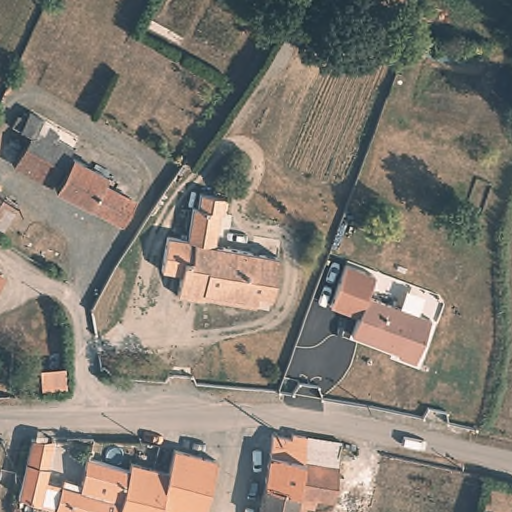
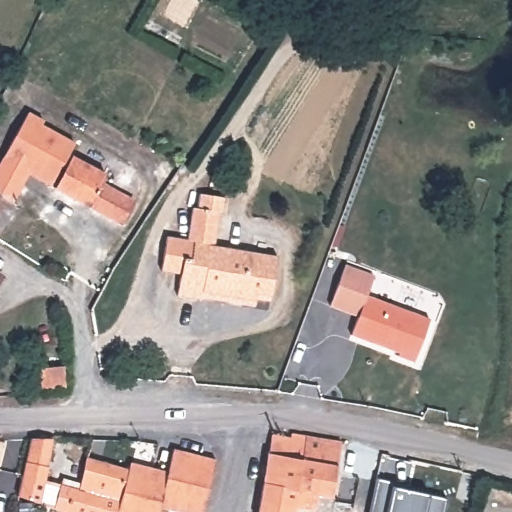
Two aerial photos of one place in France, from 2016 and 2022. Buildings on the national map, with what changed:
unchanged [(68,156),(54,188),(12,166),(29,136),(19,130),(28,112),(44,121),(59,129),(78,139),(68,156)]
unchanged [(106,177),(101,185),(134,203),(122,225),(117,221),(102,214),(54,188),(68,156),(106,177)]
unchanged [(21,209),(16,205),(0,231),(0,191),(21,209)]
unchanged [(214,241),(277,252),(271,291),(256,289),(255,296),(203,288),(202,295),(177,291),(180,269),(160,266),(166,232),(187,235),(192,203),(219,207),(214,241)]
unchanged [(458,227),(460,220),(476,226),(474,233),(458,227)]
unchanged [(435,320),(419,362),(403,357),(404,353),(356,335),(363,317),(335,306),(350,265),(379,276),(372,296),(435,320)]
unchanged [(2,277),(0,280),(0,275),(2,277)]
unchanged [(46,485),(62,488),(62,487),(81,490),(86,458),(128,470),(118,512),(59,512),(54,510),(17,497),(25,465),(30,440),(53,439),(47,468),(48,468),(46,485)]
unchanged [(268,459),(271,441),(290,444),(291,440),(305,442),(341,448),(341,451),(337,471),(332,503),(314,500),(312,510),(295,507),(294,512),(260,512),(268,459)]
unchanged [(3,442),(0,449),(0,441),(3,442)]
unchanged [(168,473),(173,450),(216,461),(203,512),(175,512),(160,509),(168,473)]
unchanged [(128,470),(130,463),(168,473),(160,509),(159,512),(118,512),(128,470)]
new [(392,481),(392,486),(429,494),(429,496),(447,498),(444,512),(369,512),(376,478),(392,481)]

